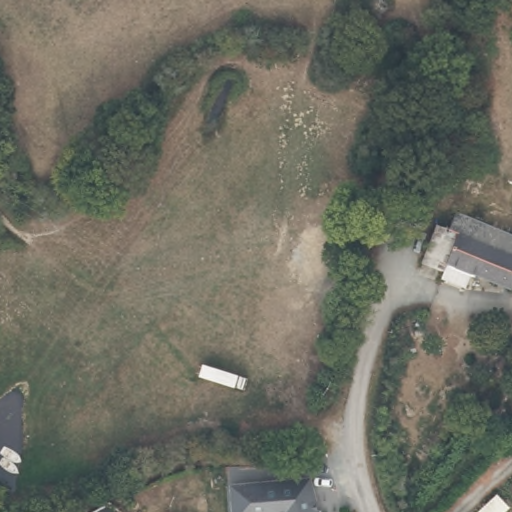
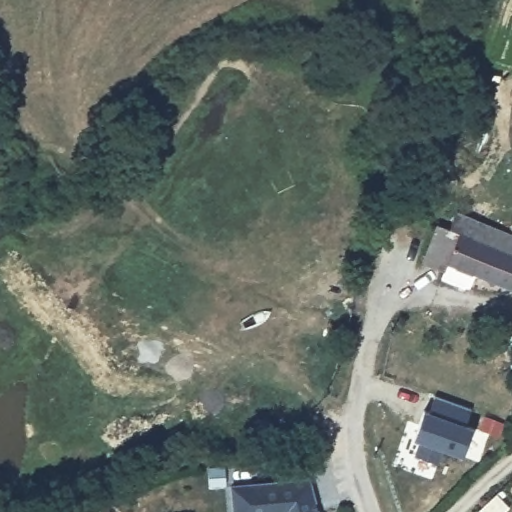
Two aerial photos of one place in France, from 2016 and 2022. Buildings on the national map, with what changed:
unchanged [(512,284),(509,291),(451,263),(446,273),(425,263),(441,229),(450,233),(456,219),(512,246),(512,284)]
new [(467,423),(473,425),(463,456),(443,449),(439,462),(415,454),(419,440),(414,439),(422,408),(429,410),(433,395),(471,407),(467,423)]
demolished [(479,464),(469,478),(453,467),(434,493),(422,484),(441,457),(446,461),(457,447),(479,464)]
unchanged [(307,485),(312,512),(234,512),(234,486),(307,485)]

